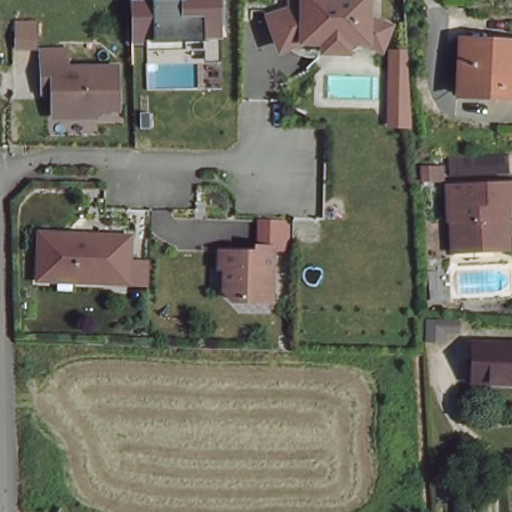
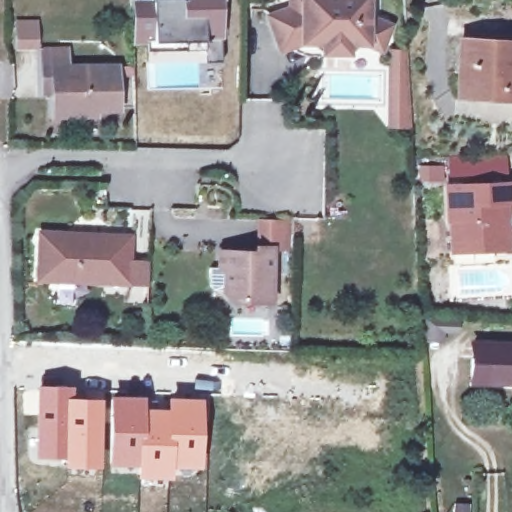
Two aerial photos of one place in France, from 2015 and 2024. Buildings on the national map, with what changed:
unchanged [(156,39),(138,39),(137,2),(155,1),(155,0),(222,0),(223,33),(223,59),(207,60),(207,40),(156,41),(156,39)]
unchanged [(384,17),(387,23),(382,36),(375,39),(365,35),(347,35),(347,45),(323,45),(323,35),(302,35),(285,41),(279,38),(271,16),(275,10),(289,4),(296,4),(296,0),(366,0),(366,11),(384,17)]
unchanged [(512,42),(512,103),(458,106),(455,45),(512,42)]
new [(400,48),(409,48),(410,77),(411,119),(393,120),(395,48),(400,48)]
unchanged [(68,71),(68,78),(119,76),(119,114),(95,113),(95,120),(57,121),(57,103),(43,103),(43,71),(68,71)]
unchanged [(445,219),(450,184),(512,191),(512,209),(504,208),(498,256),(455,251),(442,250),(445,219)]
unchanged [(107,283),(75,283),(75,275),(62,275),(62,282),(42,282),(44,236),(80,237),(80,243),(100,244),(100,238),(133,239),(132,266),(131,284),(107,283)]
unchanged [(242,301),(227,300),(217,290),(218,268),(213,268),(213,252),(250,252),(250,247),(265,248),(264,296),(264,301),(242,301)]
unchanged [(512,347),(512,388),(473,389),(472,349),(512,347)]
new [(35,385),(73,385),(73,397),(102,397),(100,466),(62,466),(62,459),(33,457),(35,385)]
new [(108,396),(145,396),(145,407),(165,407),(166,397),(203,398),(200,467),(172,468),(171,477),(134,476),(135,467),(107,466),(108,396)]

